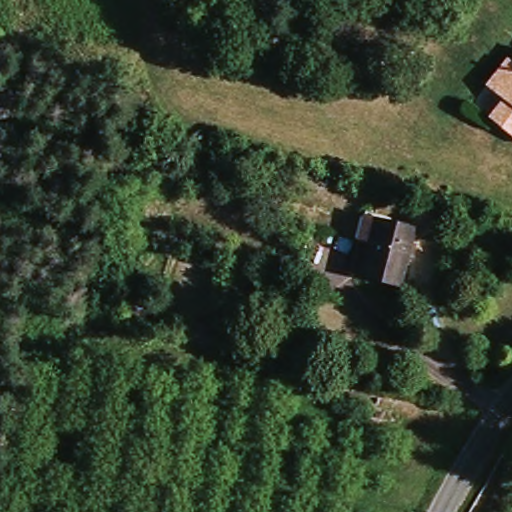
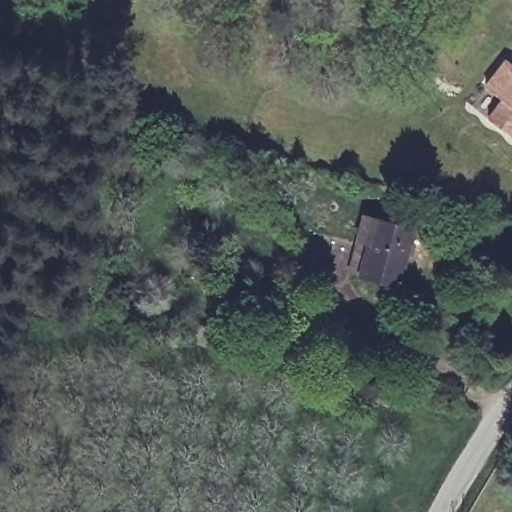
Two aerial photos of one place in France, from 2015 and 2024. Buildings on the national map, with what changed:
unchanged [(502,104),(487,91),(507,65),(512,69),(512,138),(489,121),(502,104)]
unchanged [(403,290),(366,281),(367,278),(352,273),(367,218),(384,223),(419,234),(403,290)]

